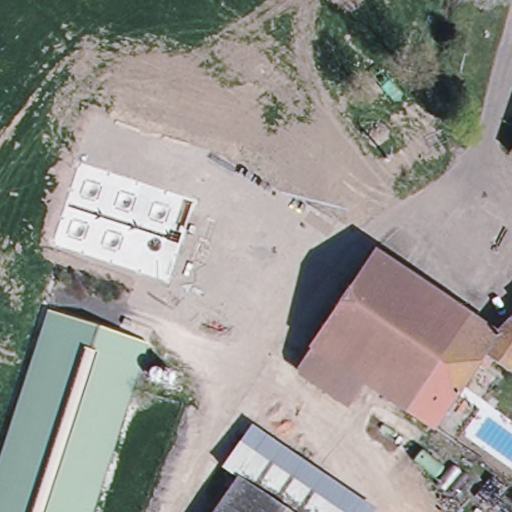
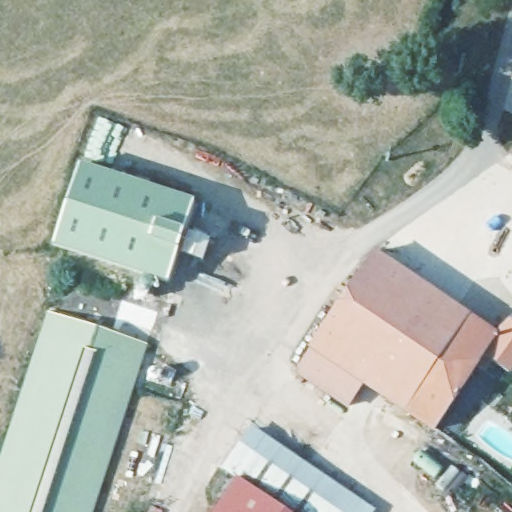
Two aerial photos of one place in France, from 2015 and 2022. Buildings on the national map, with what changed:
unchanged [(512,157),(511,156),(512,155),(512,157)]
new [(79,163),(194,200),(183,232),(177,252),(166,282),(52,245),(79,163)]
new [(208,239),(201,261),(180,253),(187,231),(208,239)]
unchanged [(375,254),(467,317),(407,410),(368,384),(315,348),(375,254)]
unchanged [(89,512),(0,512),(0,493),(50,340),(37,335),(41,324),(49,312),(145,345),(89,512)]
unchanged [(438,431),(407,410),(467,317),(496,337),(511,323),(512,322),(512,371),(510,374),(493,362),(486,373),(478,368),(438,431)]
unchanged [(0,493),(0,450),(37,335),(50,340),(0,493)]
unchanged [(304,364),(315,348),(368,384),(353,406),(305,374),(304,364)]
unchanged [(249,431),(367,512),(296,512),(240,474),(226,464),(249,431)]
unchanged [(213,512),(240,474),(296,512),(213,512)]

